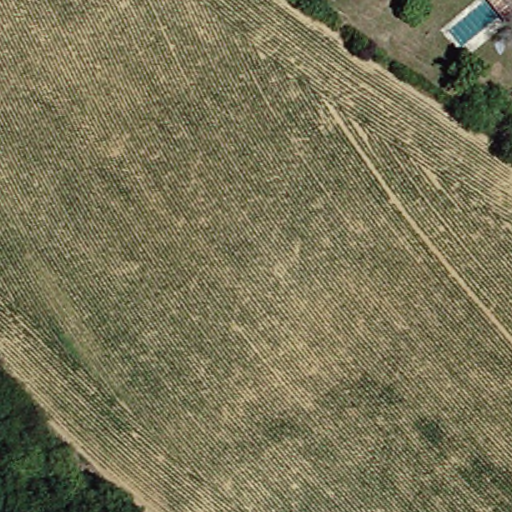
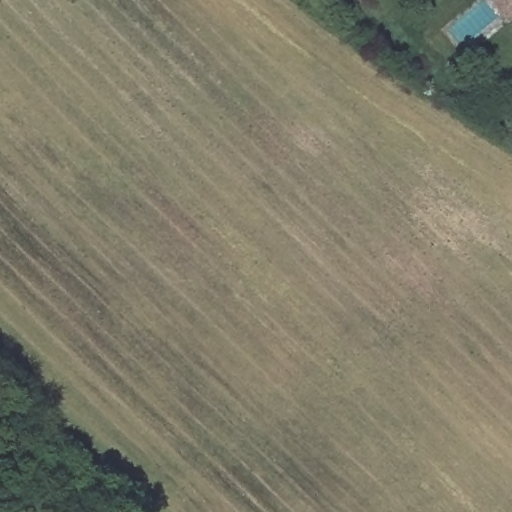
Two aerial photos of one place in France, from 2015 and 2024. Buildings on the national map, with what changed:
unchanged [(512,27),(508,22),(499,29),(476,0),(512,0),(512,27)]

